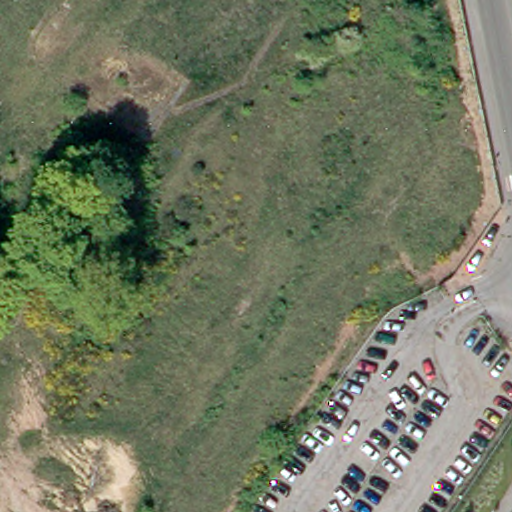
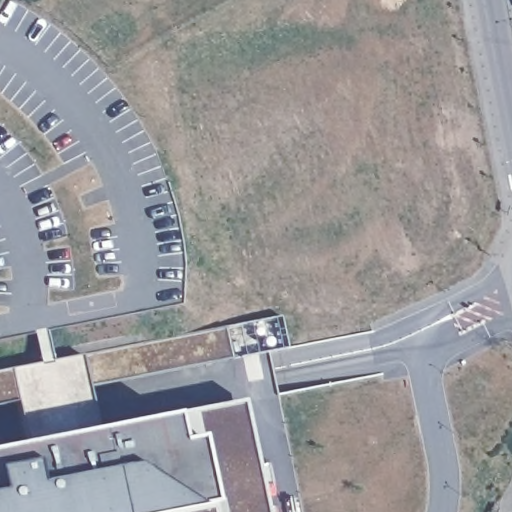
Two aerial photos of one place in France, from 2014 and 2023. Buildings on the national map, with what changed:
new [(226,326),(233,358),(91,387),(85,354),(226,326)]
new [(91,387),(100,429),(28,444),(17,399),(0,403),(0,369),(85,354),(91,387)]
new [(206,504),(194,437),(176,440),(171,415),(241,402),(262,512),(167,512),(190,507),(206,504)]
new [(100,429),(171,415),(176,440),(194,437),(206,504),(190,507),(167,512),(0,512),(0,450),(28,444),(100,429)]

